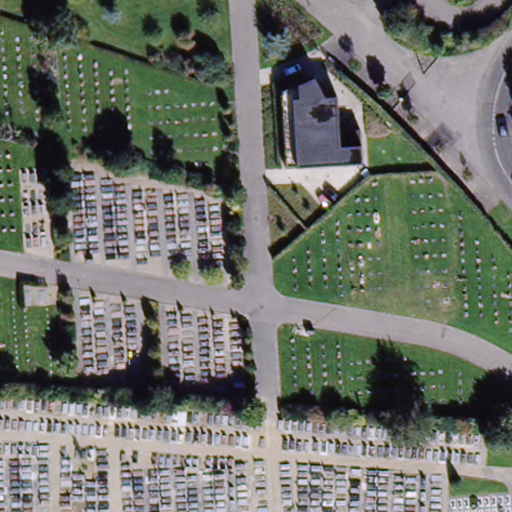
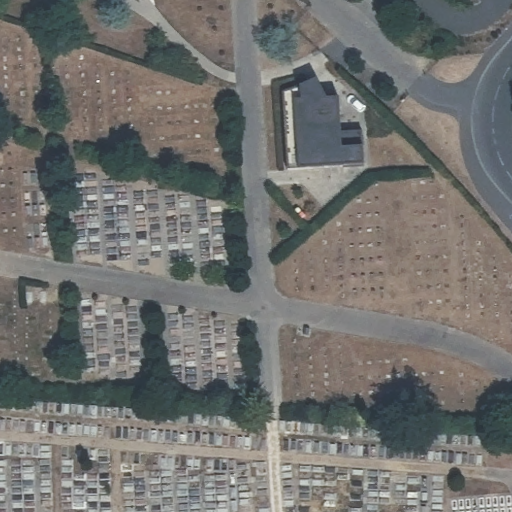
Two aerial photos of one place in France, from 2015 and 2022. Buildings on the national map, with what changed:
unchanged [(294,167),(292,92),(300,84),(310,78),(320,78),(330,89),(345,86),(348,119),(367,119),(369,161),(294,167)]

